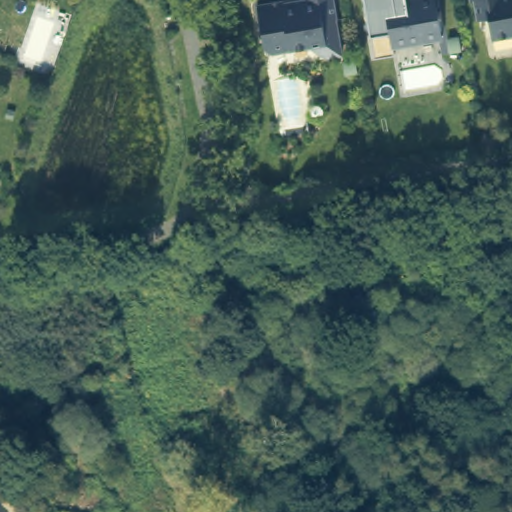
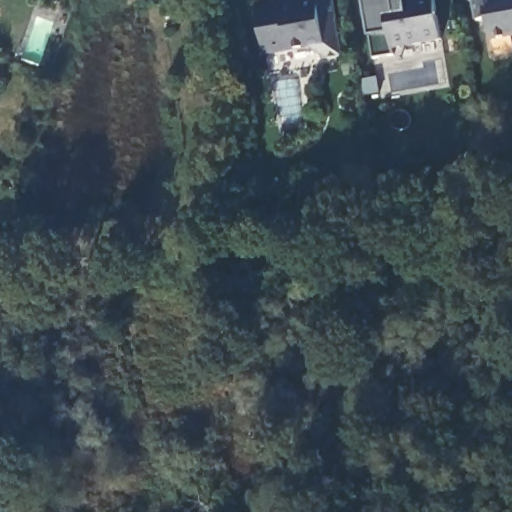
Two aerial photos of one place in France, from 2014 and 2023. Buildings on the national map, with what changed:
unchanged [(285,6),(304,3),(304,0),(334,0),(337,19),(331,19),(332,29),(336,28),(341,55),(325,57),(310,47),(275,52),(265,44),(258,5),(283,0),(285,6)]
unchanged [(388,47),(380,5),(402,1),(402,0),(431,0),(437,39),(388,47)]
unchanged [(492,37),(488,17),(477,19),(474,0),(512,0),(512,35),(511,34),(492,37)]

